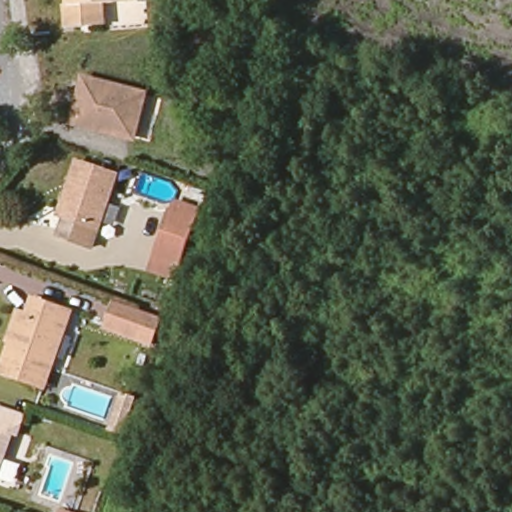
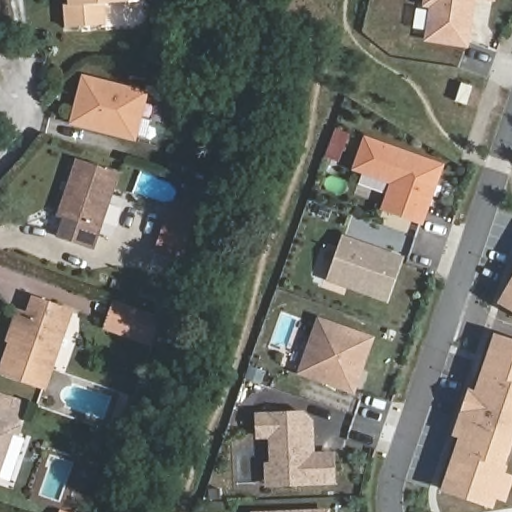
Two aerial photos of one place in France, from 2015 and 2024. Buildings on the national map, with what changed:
unchanged [(113,5),(113,25),(73,27),(71,1),(77,1),(77,0),(150,0),(150,5),(113,5)]
new [(431,12),(422,11),(424,0),(493,0),(492,6),(472,3),(465,52),(426,46),(427,42),(431,12)]
unchanged [(150,91),(136,142),(68,125),(82,74),(150,91)]
new [(468,105),(457,102),(462,85),(473,87),(468,105)]
new [(423,225),(379,210),(388,185),(350,170),(362,135),(444,164),(423,225)]
unchanged [(60,225),(68,206),(61,204),(73,172),(81,151),(121,167),(93,238),(60,225)]
unchanged [(189,250),(188,255),(164,247),(178,209),(201,218),(189,250)]
new [(387,303),(325,280),(341,235),(403,257),(387,303)]
new [(501,306),(512,286),(512,312),(501,306)]
unchanged [(29,313),(35,315),(41,298),(68,310),(63,325),(73,329),(54,385),(10,368),(29,313)]
unchanged [(105,330),(114,303),(161,320),(152,346),(105,330)]
new [(353,393),(295,374),(316,316),(373,336),(353,393)]
new [(512,340),(512,465),(509,475),(512,477),(512,498),(509,505),(499,499),(493,511),(442,494),(461,442),(455,438),(472,388),(480,391),(497,336),(512,340)]
new [(334,484),(265,487),(263,462),(268,462),(266,439),(254,440),(253,412),(301,410),(313,421),(314,452),(333,451),(334,484)]
unchanged [(20,435),(9,432),(0,460),(0,413),(25,422),(20,435)]
new [(330,512),(249,512),(329,508),(330,512)]

